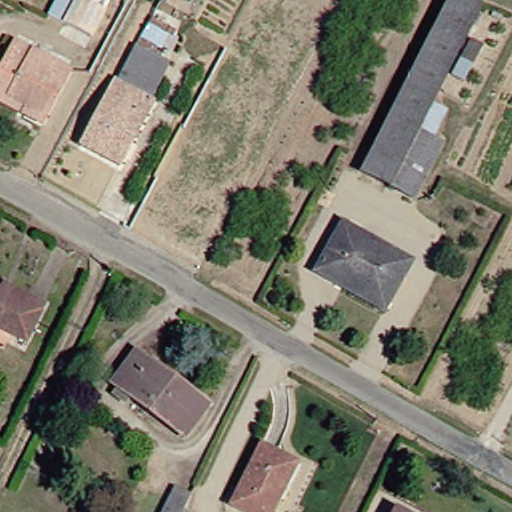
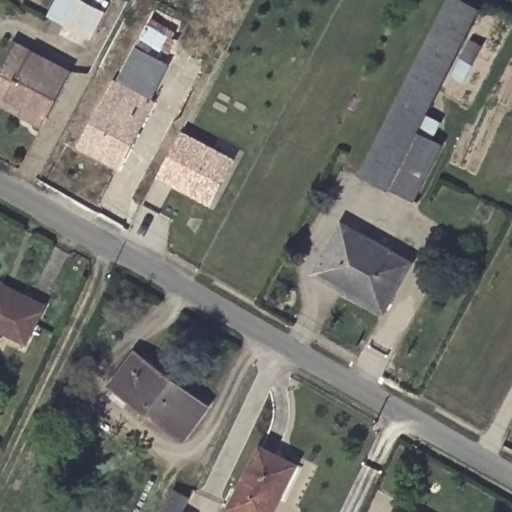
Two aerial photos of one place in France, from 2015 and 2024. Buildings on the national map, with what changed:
unchanged [(55,17),(65,0),(86,0),(96,5),(81,32),(55,17)]
unchanged [(470,7),(408,130),(433,142),(404,199),(354,171),(440,0),(455,0),(470,7)]
unchanged [(170,54),(149,93),(155,95),(121,159),(81,138),(115,74),(119,76),(142,31),(151,36),(148,42),(170,54)]
unchanged [(476,44),(466,62),(454,55),(464,36),(476,44)]
unchanged [(65,71),(35,126),(15,115),(0,107),(0,55),(9,40),(65,71)]
new [(234,157),(210,204),(156,176),(183,130),(234,157)]
unchanged [(326,284),(307,272),(333,225),(402,266),(379,302),(373,313),(326,284)]
unchanged [(28,296),(42,305),(23,345),(0,333),(0,290),(25,303),(28,296)]
unchanged [(108,383),(131,350),(206,403),(182,437),(108,383)]
unchanged [(273,491),(276,493),(267,512),(237,512),(224,505),(253,445),(287,461),(273,491)]
unchanged [(148,512),(156,493),(179,502),(174,512),(148,512)]
unchanged [(389,512),(388,512),(389,511),(389,512)]

